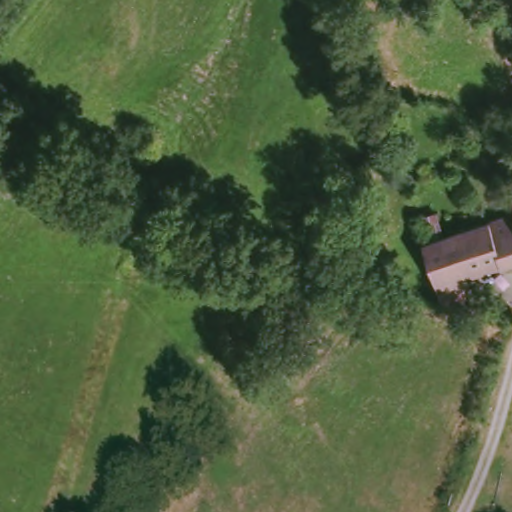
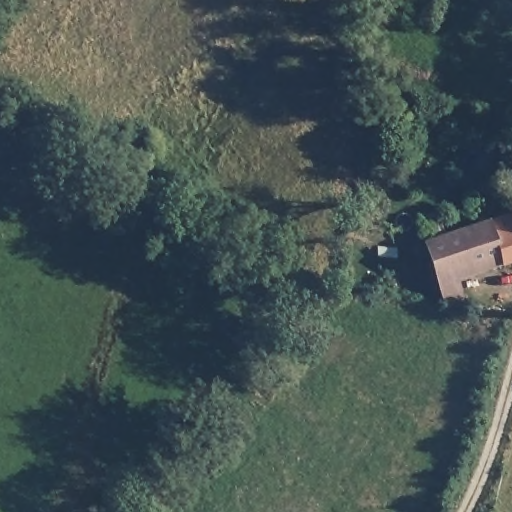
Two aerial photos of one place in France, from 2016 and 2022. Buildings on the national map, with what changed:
unchanged [(502,260),(459,277),(466,300),(465,300),(443,298),(424,237),(512,207),(512,259),(503,263),(502,260)]

